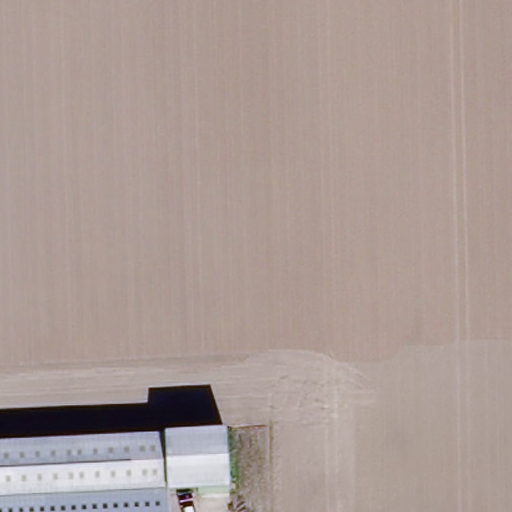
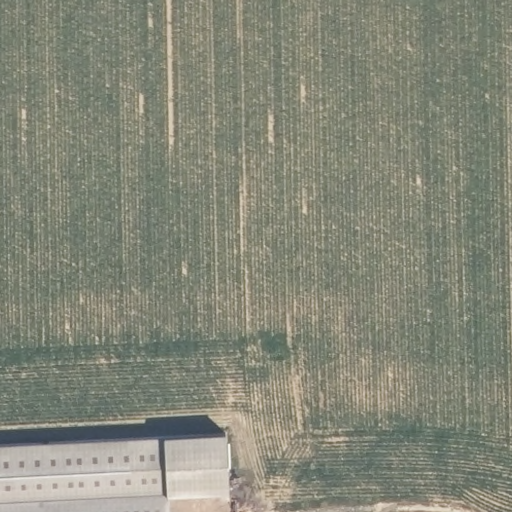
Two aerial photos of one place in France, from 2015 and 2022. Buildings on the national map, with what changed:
unchanged [(229,494),(173,496),(173,491),(0,498),(0,445),(165,437),(226,434),(229,494)]
unchanged [(173,491),(174,512),(0,512),(0,498),(173,491)]

